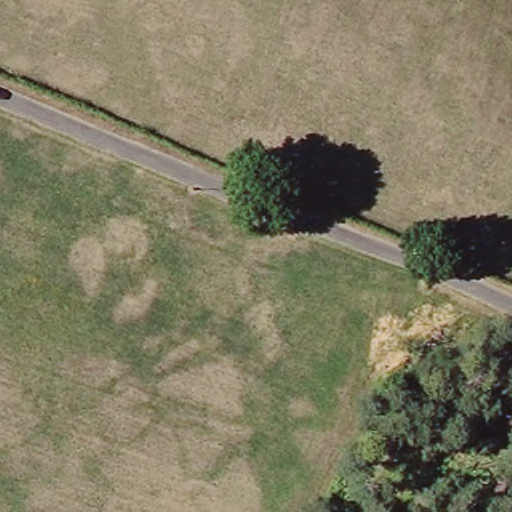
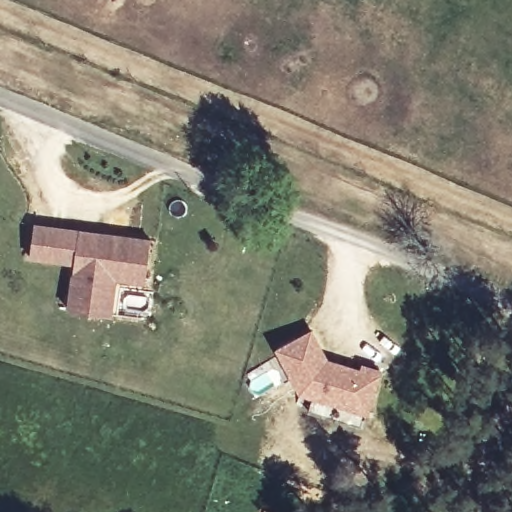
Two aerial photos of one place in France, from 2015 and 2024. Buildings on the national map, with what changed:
new [(152,238),(146,283),(118,280),(112,314),(68,307),(74,263),(30,257),(33,222),(152,238)]
new [(296,393),(273,351),(305,333),(322,361),(357,372),(358,367),(375,373),(362,415),(357,432),(305,415),(310,397),(296,393)]

